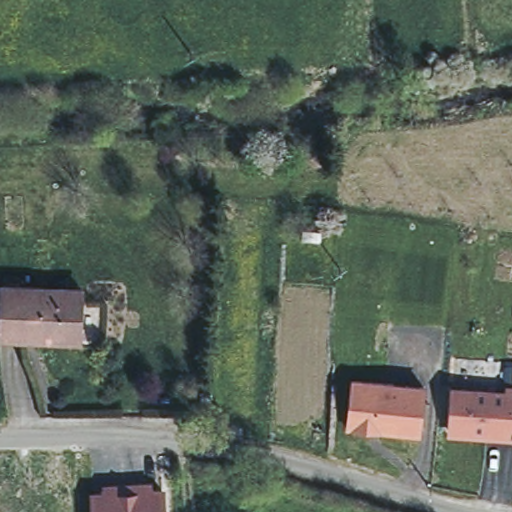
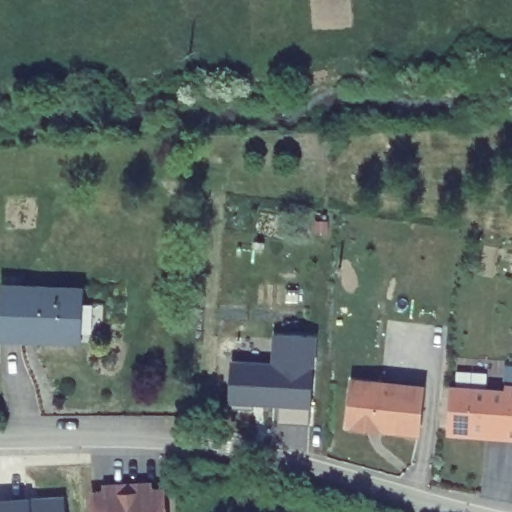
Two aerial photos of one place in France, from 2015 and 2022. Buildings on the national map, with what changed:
unchanged [(69,332),(0,329),(0,276),(72,279),(69,332)]
new [(253,410),(229,409),(232,363),(274,366),(275,335),(314,337),(309,426),(277,424),(278,405),(263,404),(253,403),(253,410)]
unchanged [(352,379),(425,385),(420,435),(348,428),(352,379)]
unchanged [(506,393),(506,389),(512,389),(512,439),(503,439),(503,434),(471,432),(465,436),(453,435),(449,430),(451,391),(506,393)]
unchanged [(111,485),(145,484),(152,484),(152,491),(163,491),(164,512),(94,512),(93,493),(104,493),(104,486),(111,485)]

